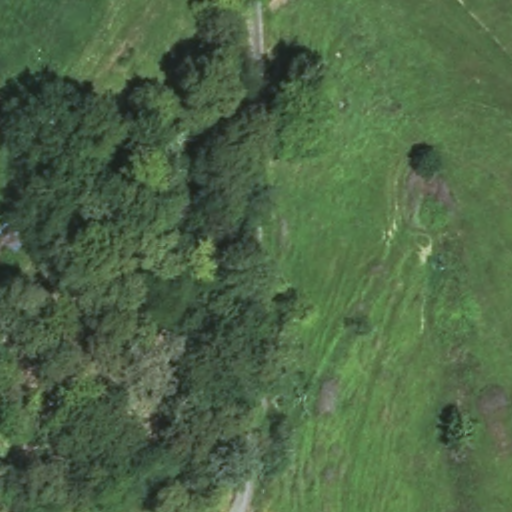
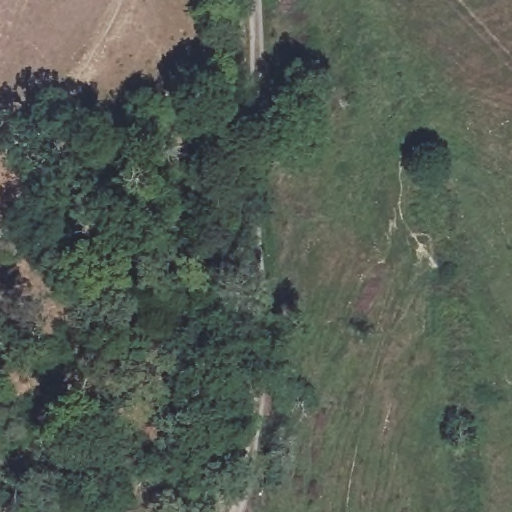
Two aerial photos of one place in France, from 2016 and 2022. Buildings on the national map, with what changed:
unchanged [(1,290),(0,290),(0,266),(1,290)]

